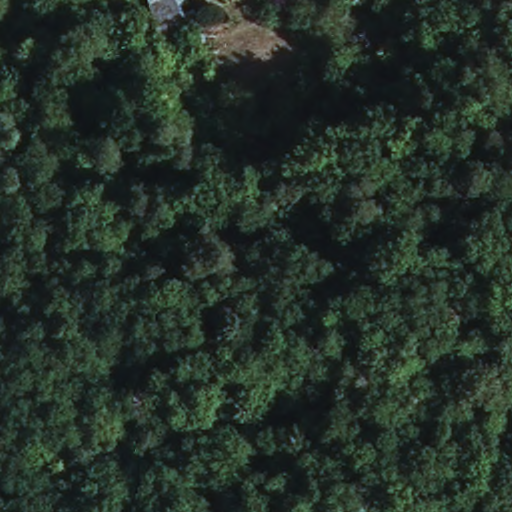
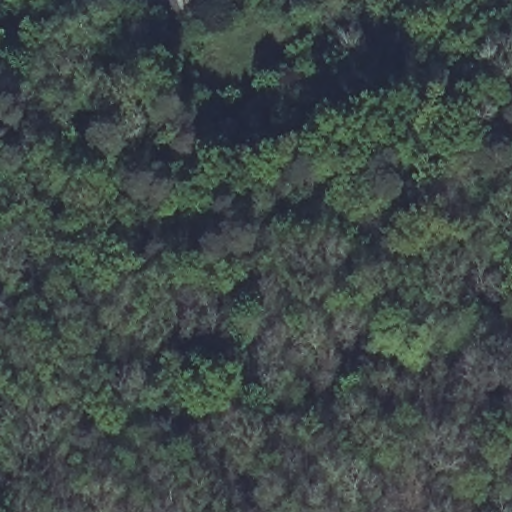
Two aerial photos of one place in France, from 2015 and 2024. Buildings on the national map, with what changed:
unchanged [(179,35),(167,0),(197,0),(205,25),(179,35)]

